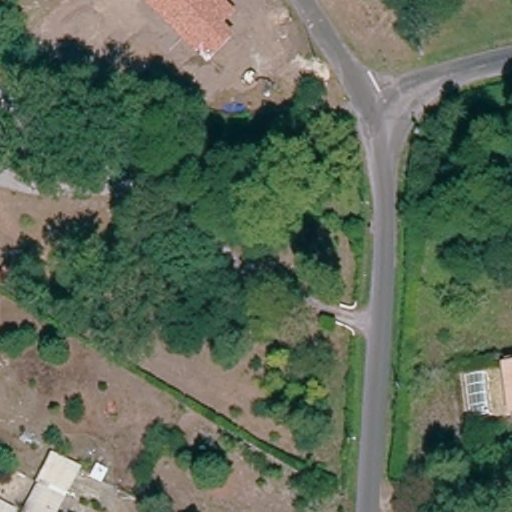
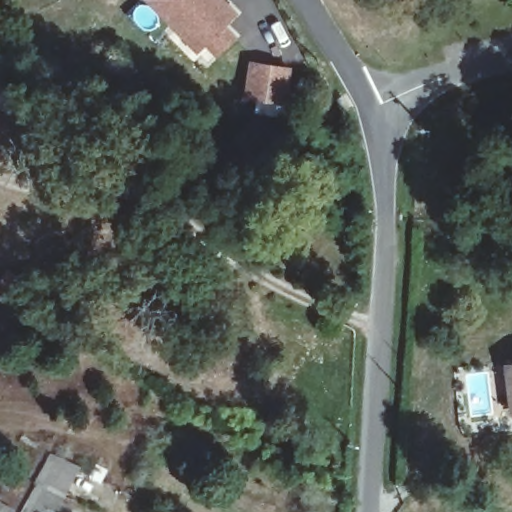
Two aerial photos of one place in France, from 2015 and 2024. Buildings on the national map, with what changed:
unchanged [(238,12),(227,24),(237,35),(215,56),(204,46),(196,54),(144,0),(226,0),(238,12)]
new [(256,65),(293,70),(288,102),(251,97),(256,65)]
unchanged [(512,357),(512,406),(510,406),(510,357),(512,357)]
unchanged [(66,488),(53,512),(25,512),(43,477),(66,488)]
unchanged [(14,512),(0,512),(0,501),(16,509),(14,512)]

